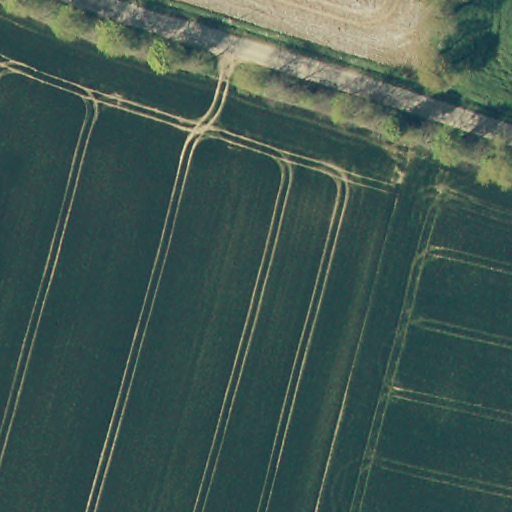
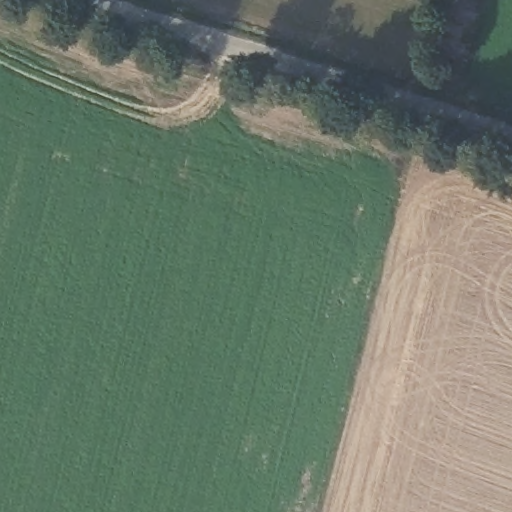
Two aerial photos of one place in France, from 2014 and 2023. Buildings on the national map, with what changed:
[]

